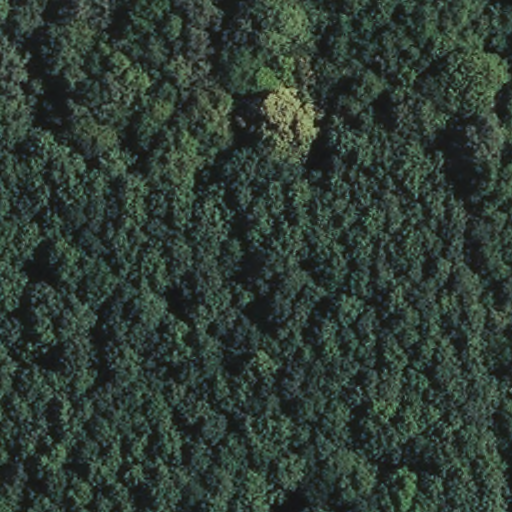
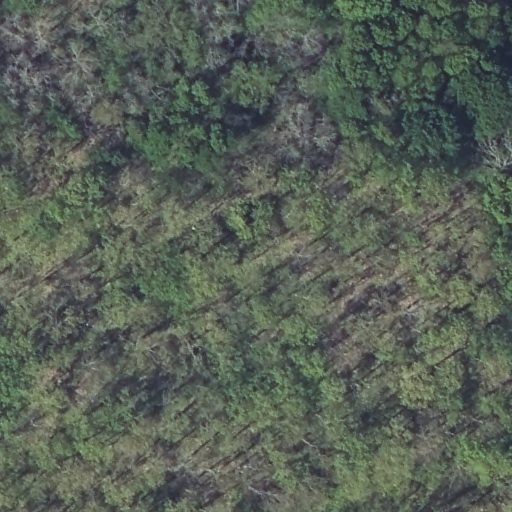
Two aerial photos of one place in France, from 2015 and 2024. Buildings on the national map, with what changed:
[]

